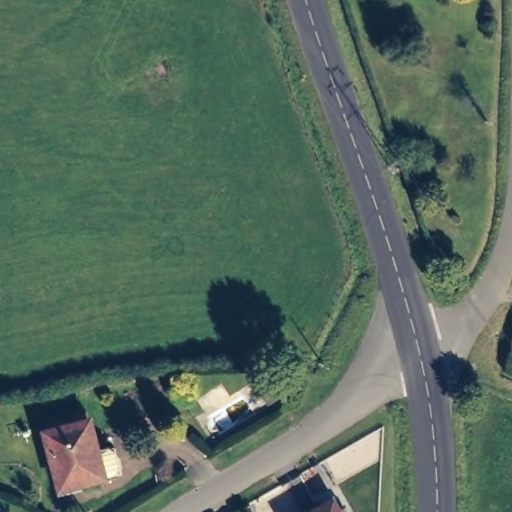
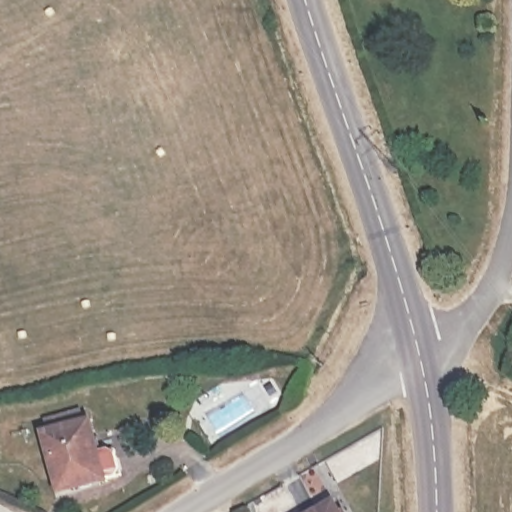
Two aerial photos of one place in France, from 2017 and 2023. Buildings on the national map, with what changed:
unchanged [(97,458),(112,455),(117,481),(101,489),(61,496),(45,443),(91,434),(97,458)]
unchanged [(343,512),(329,512),(341,506),(343,512)]

